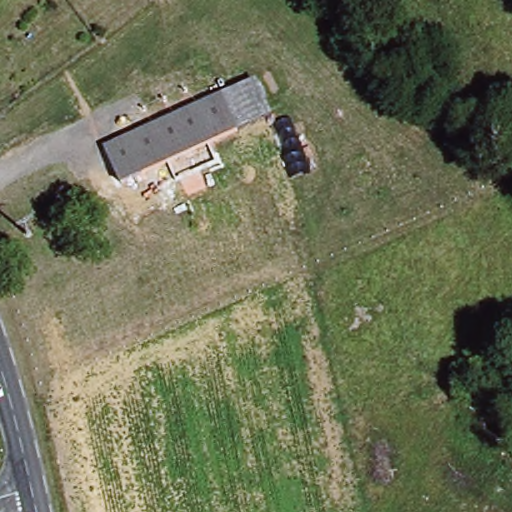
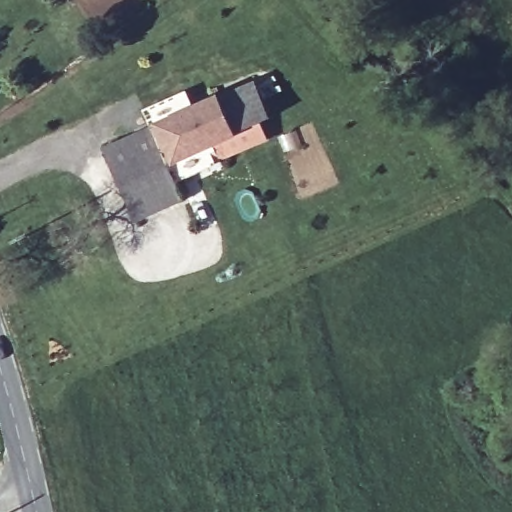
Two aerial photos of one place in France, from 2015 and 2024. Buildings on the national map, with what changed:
unchanged [(220,97),(235,132),(178,156),(120,181),(105,145),(220,97)]

